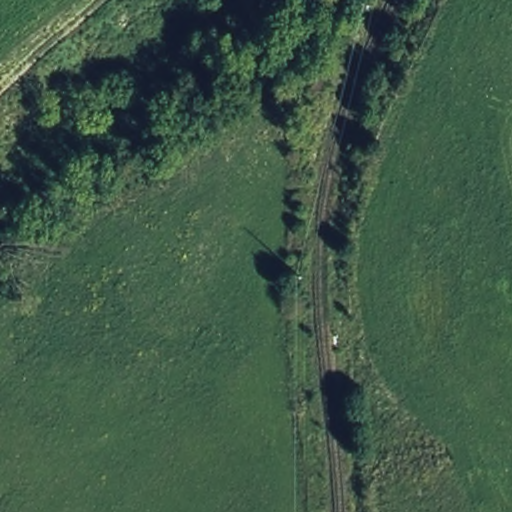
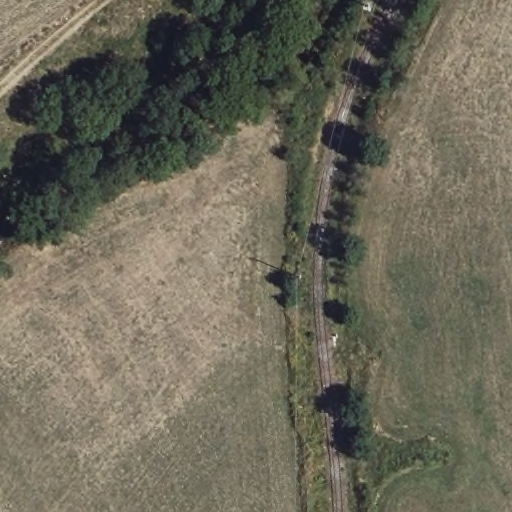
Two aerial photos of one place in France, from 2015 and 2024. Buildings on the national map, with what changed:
[]

